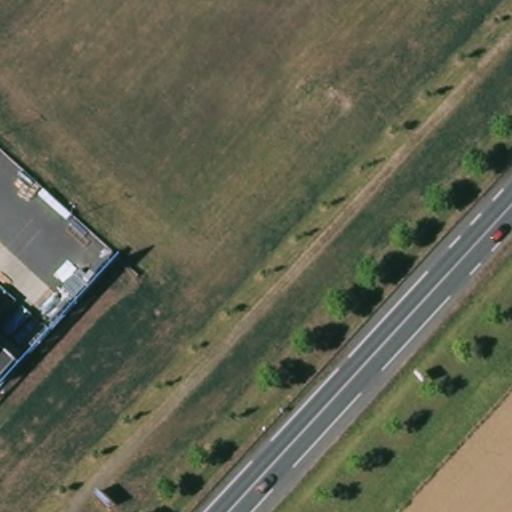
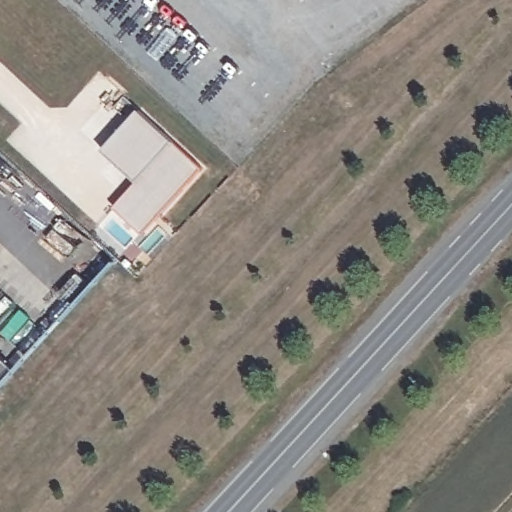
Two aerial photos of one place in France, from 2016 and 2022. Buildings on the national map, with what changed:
new [(139,110),(203,169),(142,235),(113,208),(136,182),(102,150),(139,110)]
unchanged [(15,367),(0,385),(0,353),(15,367)]

